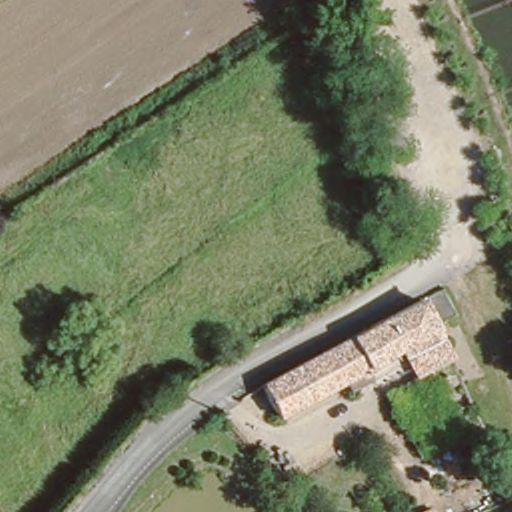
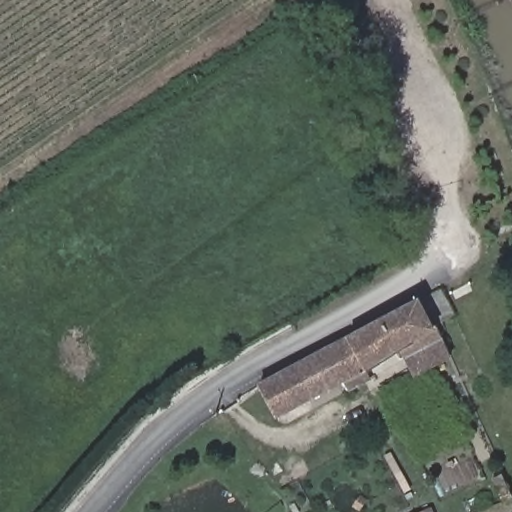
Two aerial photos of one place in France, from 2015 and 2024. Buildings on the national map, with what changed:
unchanged [(282,415),(276,405),(265,386),(302,365),(384,320),(415,303),(422,298),(437,324),(438,327),(441,326),(448,337),(447,338),(448,342),(454,354),(421,372),(407,346),(367,367),(372,377),(360,385),(355,375),(328,389),(282,415)]
unchanged [(510,490),(501,495),(497,488),(506,482),(510,490)]
unchanged [(418,512),(427,507),(429,512),(418,512)]

